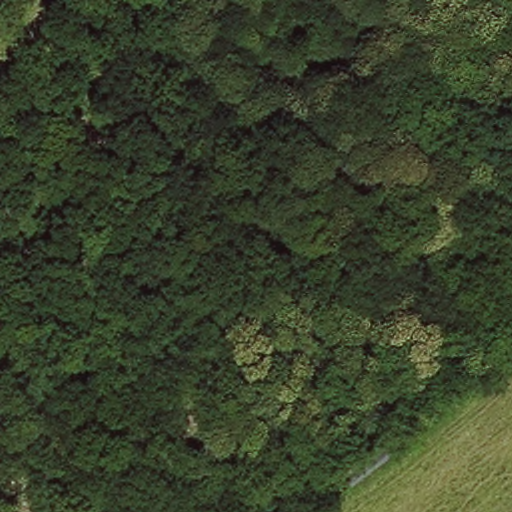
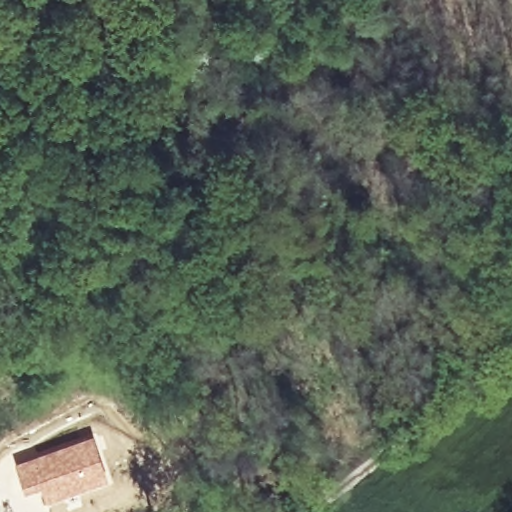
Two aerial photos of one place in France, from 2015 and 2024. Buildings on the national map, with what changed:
new [(93,436),(109,481),(44,504),(39,489),(25,494),(15,464),(93,436)]

